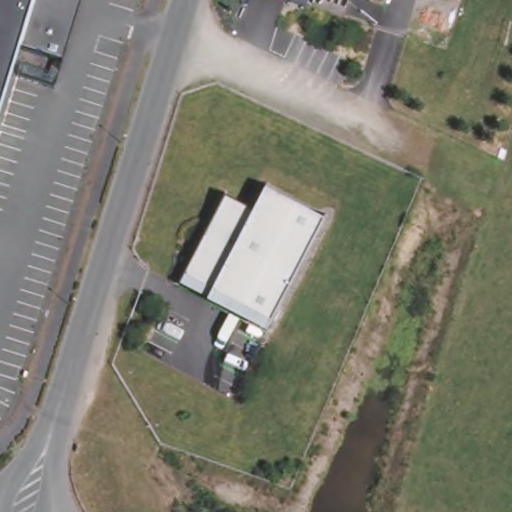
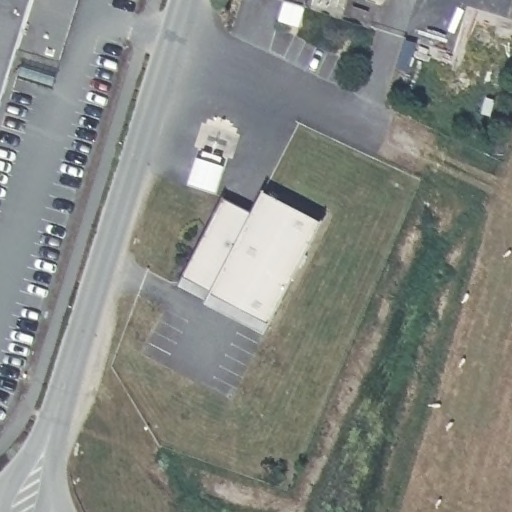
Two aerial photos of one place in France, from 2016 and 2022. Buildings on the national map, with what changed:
unchanged [(16,50),(0,104),(0,0),(79,0),(60,63),(16,50)]
unchanged [(297,0),(308,0),(307,3),(297,0)]
unchanged [(179,282),(222,199),(251,214),(262,194),(321,225),(269,328),(179,282)]

